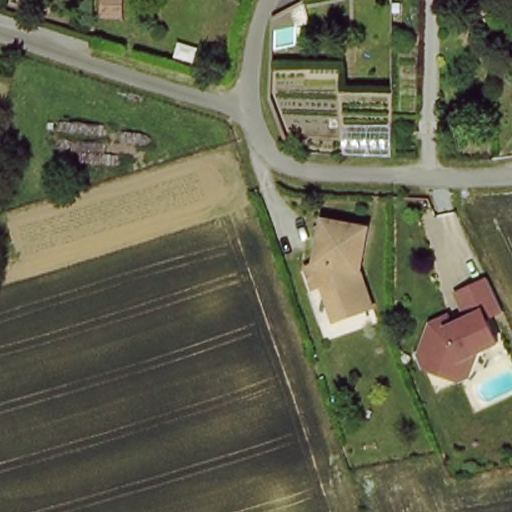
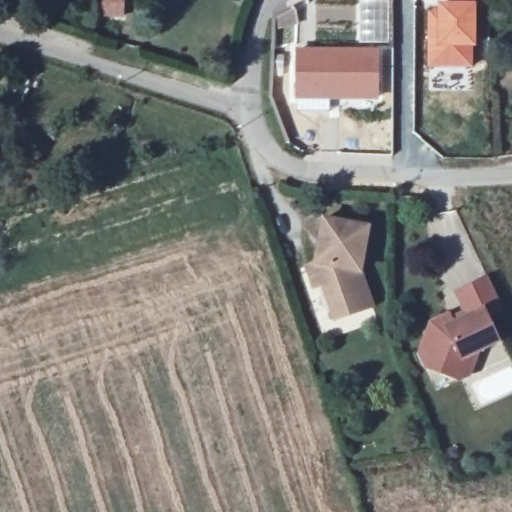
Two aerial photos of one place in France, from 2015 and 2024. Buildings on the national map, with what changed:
new [(357,0),(391,0),(391,45),(380,45),(357,45),(357,0)]
new [(427,2),(475,1),(473,67),(427,68),(427,2)]
unchanged [(293,7),(296,25),(274,32),(276,15),(293,7)]
new [(357,46),(357,45),(380,45),(379,101),(330,101),(330,112),(294,111),(293,46),(357,46)]
unchanged [(377,309),(339,322),(327,286),(318,289),(311,268),(320,265),(331,221),(375,231),(364,275),(359,274),(357,276),(358,282),(369,285),(377,309)]
unchanged [(462,379),(455,376),(425,365),(420,354),(432,322),(449,313),(451,318),(453,322),(468,315),(462,303),(457,291),(489,276),(494,287),(503,308),(487,315),(499,340),(477,350),(469,376),(462,379)]

